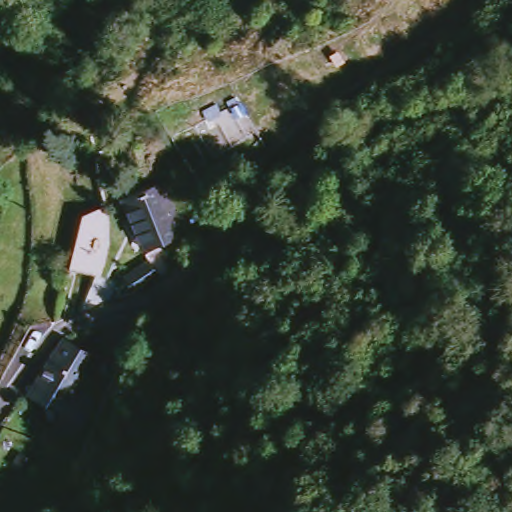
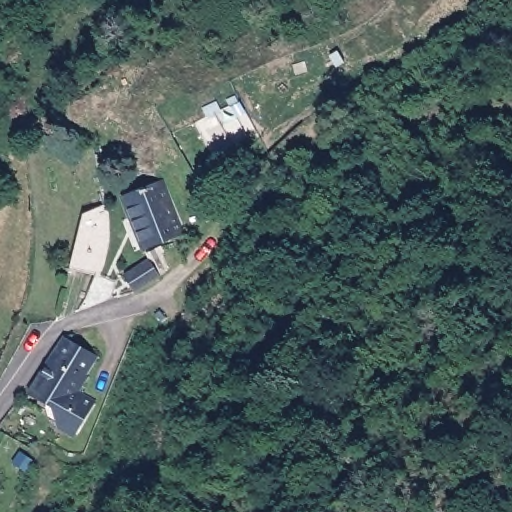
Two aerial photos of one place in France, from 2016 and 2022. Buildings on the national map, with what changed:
unchanged [(170,271),(145,280),(135,260),(152,246),(131,185),(175,168),(193,221),(172,231),(180,260),(170,271)]
unchanged [(92,208),(114,220),(98,269),(75,263),(92,208)]
unchanged [(55,419),(55,404),(34,387),(77,332),(109,357),(85,392),(100,402),(77,435),(55,419)]

